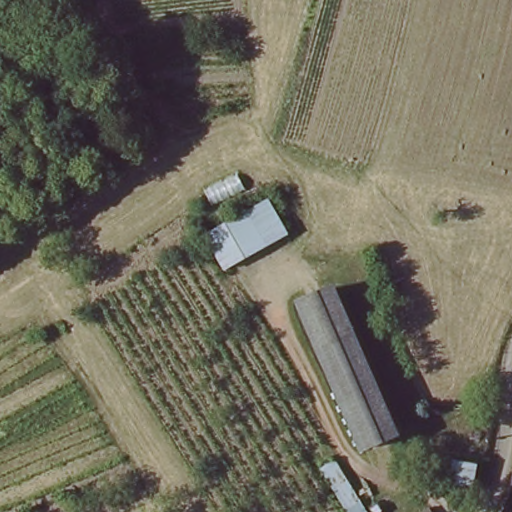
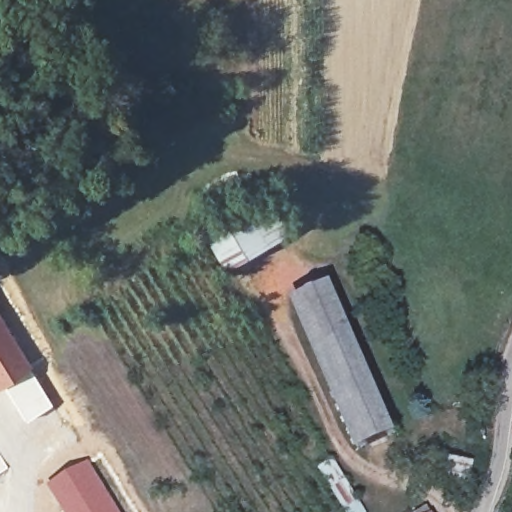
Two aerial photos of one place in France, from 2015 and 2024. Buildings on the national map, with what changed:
unchanged [(259,251),(223,269),(203,230),(271,196),(290,235),(259,251)]
unchanged [(397,434),(371,447),(296,304),(323,291),(397,434)]
new [(7,324),(54,405),(26,423),(2,386),(0,387),(0,314),(7,324)]
unchanged [(335,453),(368,512),(335,512),(310,468),(335,453)]
unchanged [(473,489),(442,484),(445,458),(463,460),(477,462),(473,489)]
new [(121,512),(63,512),(48,487),(90,460),(121,512)]

